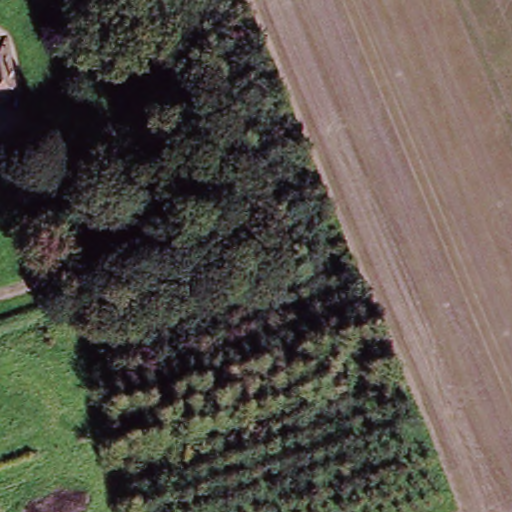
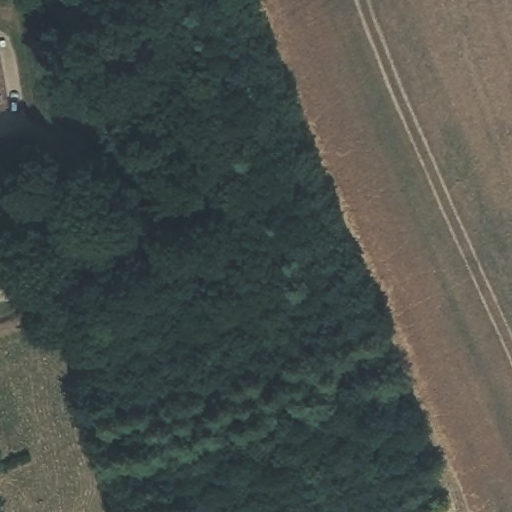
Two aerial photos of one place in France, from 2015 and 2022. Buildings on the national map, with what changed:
unchanged [(0,46),(5,45),(13,97),(0,99),(0,46)]

